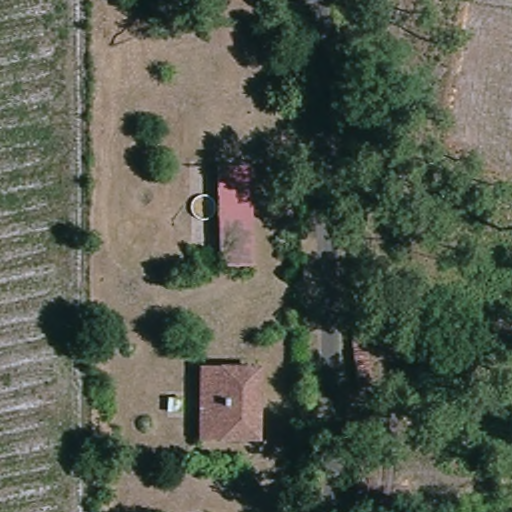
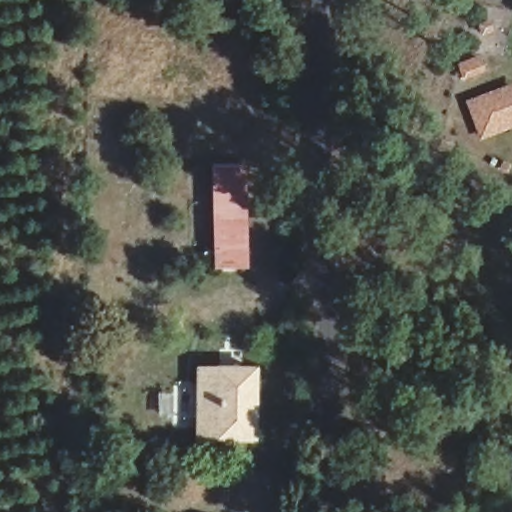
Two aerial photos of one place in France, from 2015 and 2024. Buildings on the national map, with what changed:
new [(465,100),(512,84),(512,130),(481,141),(465,100)]
unchanged [(218,269),(217,170),(249,169),(253,270),(218,269)]
unchanged [(260,446),(201,444),(200,374),(260,374),(260,446)]

